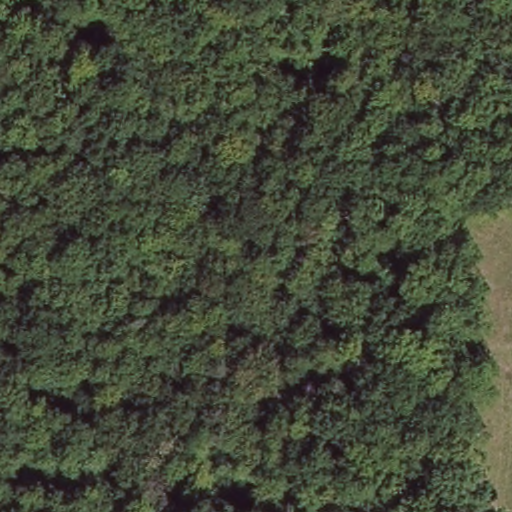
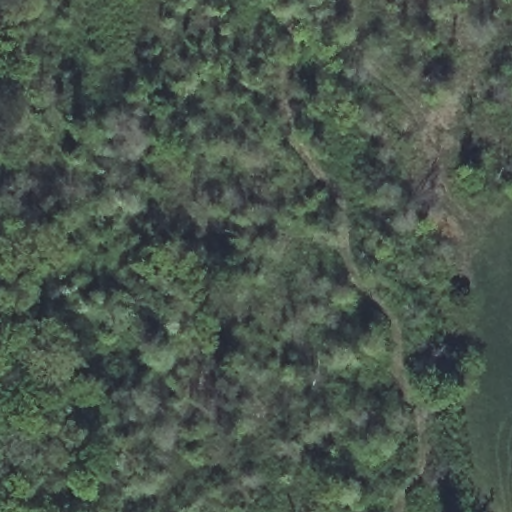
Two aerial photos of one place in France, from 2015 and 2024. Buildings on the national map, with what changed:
[]

